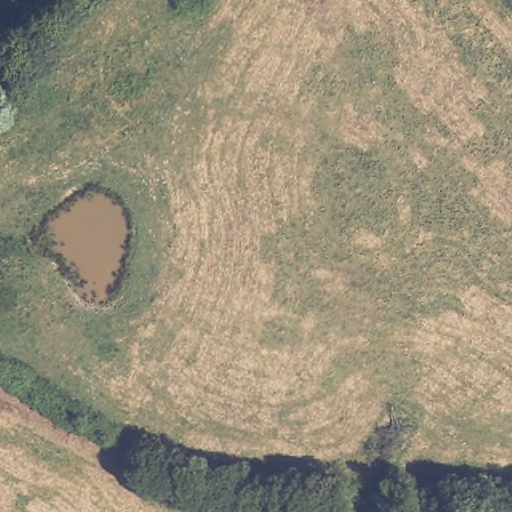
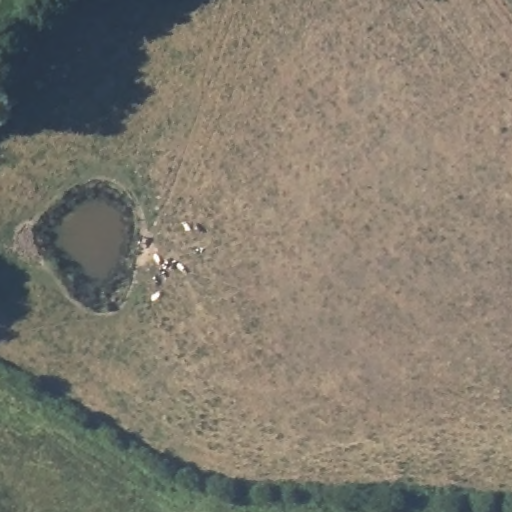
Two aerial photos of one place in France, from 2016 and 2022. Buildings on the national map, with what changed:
[]

